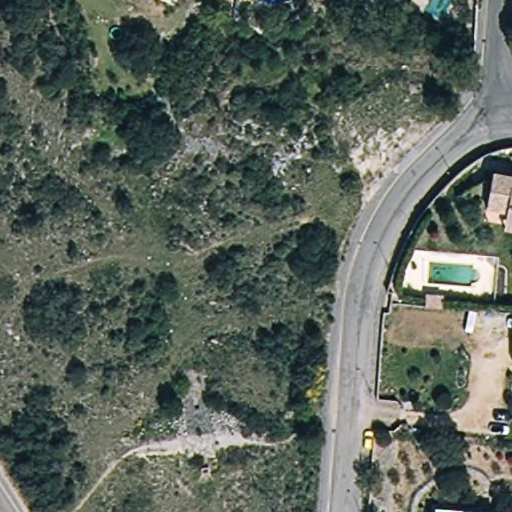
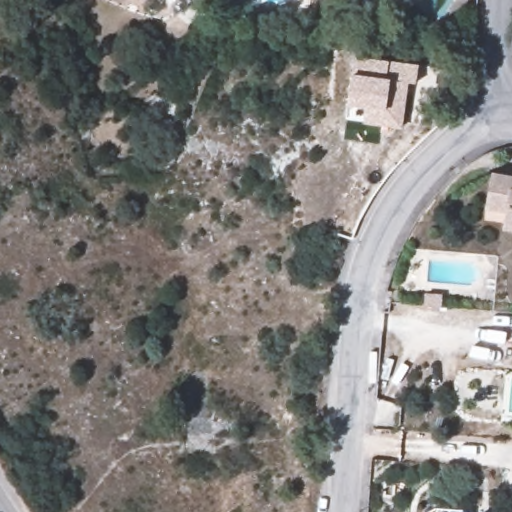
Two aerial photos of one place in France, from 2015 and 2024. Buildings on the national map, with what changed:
new [(349,104),(356,58),(419,67),(417,84),(408,82),(406,96),(402,129),(384,126),(367,124),(370,106),(349,104)]
unchanged [(512,187),(512,236),(503,236),(502,224),(482,225),(480,189),(512,187)]
unchanged [(425,298),(441,299),(440,311),(423,310),(425,298)]

